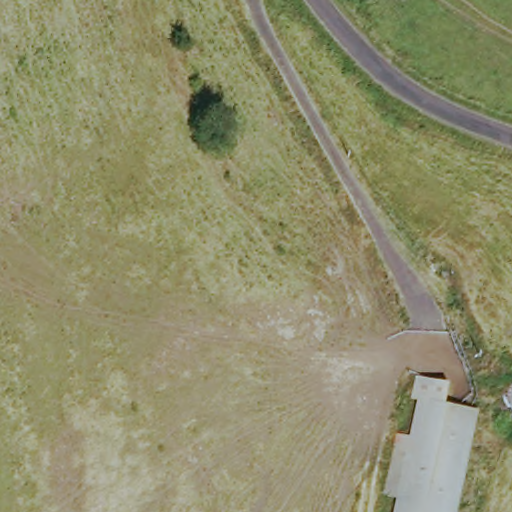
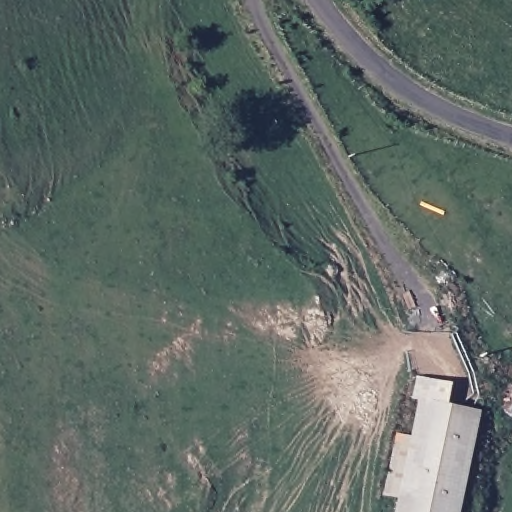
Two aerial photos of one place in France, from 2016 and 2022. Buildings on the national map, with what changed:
unchanged [(390,495),(377,492),(390,432),(403,435),(410,397),(402,394),(407,372),(427,377),(422,396),(468,406),(450,512),(387,512),(390,495)]

